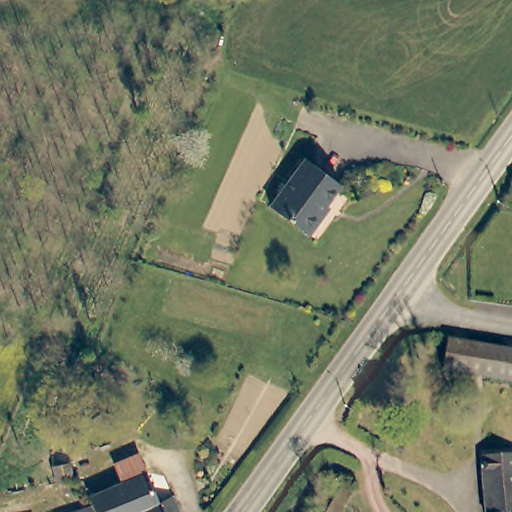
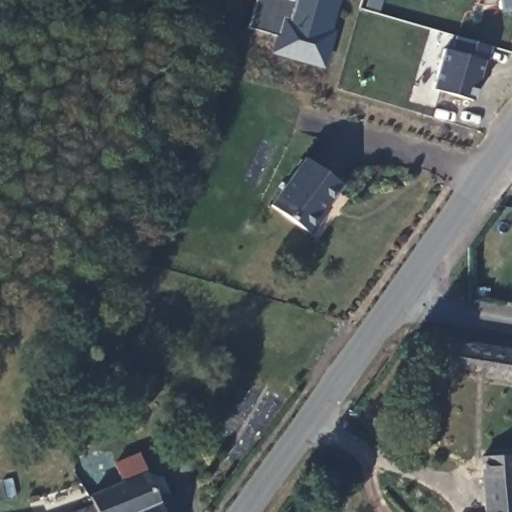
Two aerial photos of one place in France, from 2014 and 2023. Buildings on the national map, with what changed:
new [(254,0),(293,0),(295,0),(327,0),(319,29),(331,32),(322,65),(273,51),(277,36),(246,27),(254,0)]
new [(512,10),(499,11),(498,0),(512,0),(512,10)]
new [(444,49),(452,51),(456,36),(491,46),(486,62),(484,61),(472,100),(432,89),(444,49)]
unchanged [(270,211),(304,165),(337,187),(319,212),(327,218),(309,240),(270,211)]
unchanged [(452,343),(512,351),(512,384),(450,375),(452,343)]
new [(87,376),(104,383),(93,411),(77,403),(87,376)]
unchanged [(510,450),(512,472),(512,512),(487,512),(478,512),(473,456),(510,450)]
unchanged [(170,512),(88,512),(87,508),(84,501),(85,497),(115,486),(108,467),(132,458),(139,477),(151,508),(167,502),(170,512)]
unchanged [(88,512),(77,512),(87,508),(88,512)]

